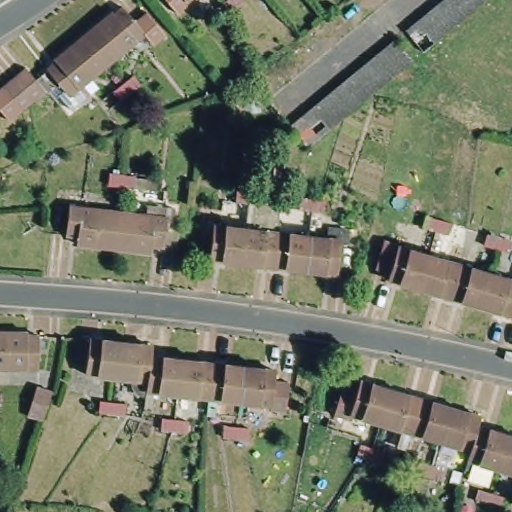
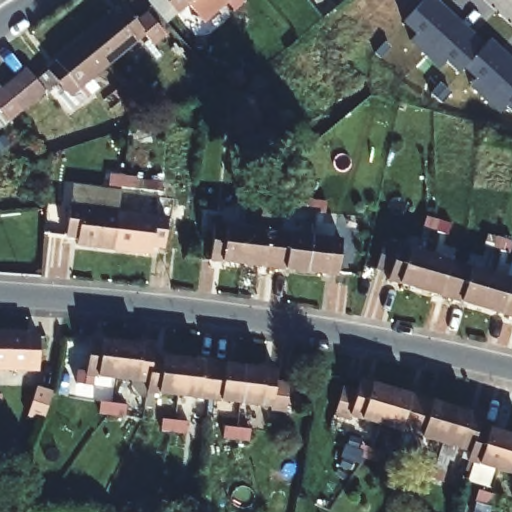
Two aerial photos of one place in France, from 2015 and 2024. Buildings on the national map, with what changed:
unchanged [(172,15),(159,0),(179,0),(182,0),(181,1),(185,5),(172,15)]
new [(436,0),(484,44),(463,67),(457,74),(445,62),(438,70),(409,41),(415,35),(402,22),(424,0),(436,0)]
demolished [(407,28),(440,0),(483,0),(424,50),(407,28)]
unchanged [(113,16),(123,9),(135,23),(147,14),(166,36),(153,47),(143,35),(107,65),(84,37),(112,15),(113,16)]
unchanged [(107,65),(82,86),(85,91),(67,106),(59,96),(64,91),(47,71),(57,64),(55,61),(84,37),(107,65)]
unchanged [(310,144),(294,124),(395,37),(409,61),(373,92),(310,144)]
new [(512,59),(512,113),(505,107),(499,115),(469,86),(475,80),(463,67),(484,44),(490,38),(512,59)]
unchanged [(2,91),(12,82),(14,80),(27,70),(44,93),(31,104),(26,108),(20,114),(7,124),(0,114),(0,93),(2,91)]
unchanged [(114,92),(123,85),(132,77),(139,86),(130,93),(120,101),(114,92)]
unchanged [(135,189),(122,188),(110,187),(112,175),(124,176),(136,178),(135,189)]
unchanged [(164,187),(162,197),(145,195),(145,185),(164,187)]
unchanged [(250,205),(238,204),(240,191),(248,192),(251,192),(265,194),(264,206),(250,205)]
unchanged [(327,201),(326,214),(314,212),(302,211),(303,199),(315,200),(319,200),(327,201)]
unchanged [(119,208),(115,244),(77,240),(78,232),(66,231),(70,202),(119,208)]
unchanged [(119,208),(167,213),(164,243),(153,241),(152,249),(115,244),(119,208)]
unchanged [(435,220),(450,225),(447,235),(435,231),(426,229),(429,219),(435,220)]
unchanged [(242,265),(210,260),(215,226),(247,230),(242,265)]
unchanged [(274,269),(242,265),(247,230),(278,235),(274,269)]
unchanged [(313,272),(312,273),(310,273),(307,273),(274,269),(278,235),(310,239),(344,242),(345,244),(345,245),(342,248),(337,276),(313,272)]
unchanged [(506,252),(498,250),(487,247),(490,236),(502,240),(510,242),(506,252)]
unchanged [(420,290),(390,280),(391,273),(377,268),(385,240),(400,244),(399,247),(430,256),(420,290)]
unchanged [(450,298),(420,290),(430,256),(460,265),(450,298)]
unchanged [(460,265),(491,275),(481,308),(450,298),(460,265)]
unchanged [(481,308),(491,275),(512,281),(512,315),(512,316),(481,308)]
unchanged [(32,331),(43,331),(42,365),(0,365),(0,327),(31,327),(32,331)]
unchanged [(120,379),(87,375),(90,341),(124,345),(120,379)]
unchanged [(152,360),(150,382),(120,379),(124,345),(154,347),(152,360)]
unchanged [(207,365),(208,365),(211,365),(207,400),(174,397),(172,397),(149,395),(150,382),(152,360),(185,363),(205,365),(207,365)]
unchanged [(282,369),(280,405),(212,400),(215,365),(282,369)]
unchanged [(338,413),(347,383),(362,387),(365,378),(395,387),(385,421),(354,412),(354,417),(338,413)]
unchanged [(395,387),(425,396),(415,430),(385,421),(395,387)]
unchanged [(454,412),(445,440),(415,430),(425,396),(456,405),(454,412)]
unchanged [(127,418),(115,417),(110,416),(102,415),(104,403),(116,405),(129,406),(127,418)]
unchanged [(484,417),(482,423),(474,448),(445,440),(454,412),(456,405),(485,413),(484,417)]
unchanged [(188,435),(177,435),(172,434),(165,433),(167,422),(178,423),(190,424),(188,435)]
unchanged [(482,423),(512,432),(512,437),(503,466),(472,457),(474,448),(482,423)]
unchanged [(252,431),(250,442),(243,441),(227,439),(228,428),(242,430),(252,431)]
unchanged [(512,469),(503,466),(512,437),(512,469)]
unchanged [(367,462),(356,459),(360,447),(373,451),(384,455),(380,466),(367,462)]
unchanged [(430,481),(417,477),(421,465),(433,469),(444,472),(440,484),(430,481)]
unchanged [(477,505),(480,492),(491,496),(502,500),(498,511),(492,510),(477,505)]

